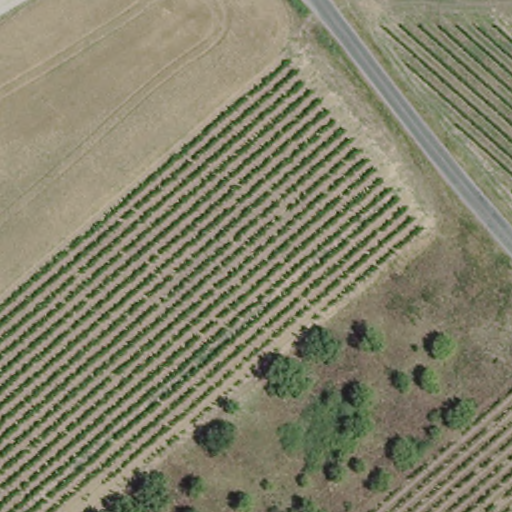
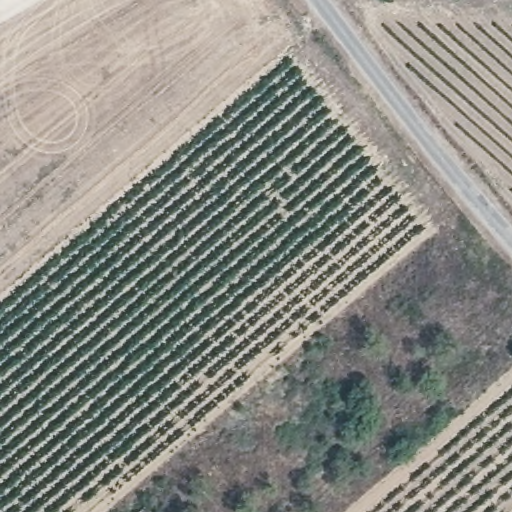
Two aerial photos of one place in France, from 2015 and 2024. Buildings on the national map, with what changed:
unchanged [(143,505),(149,512),(136,512),(143,505)]

